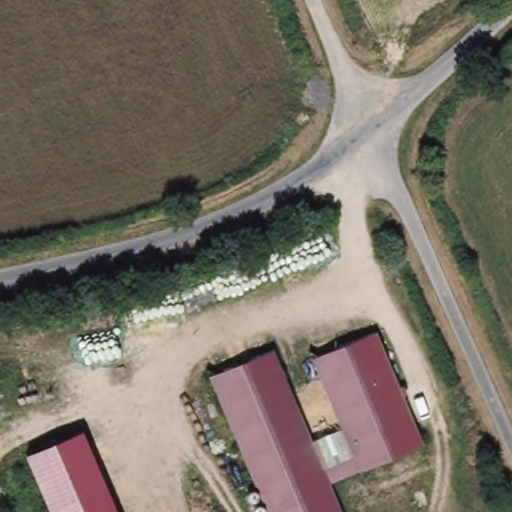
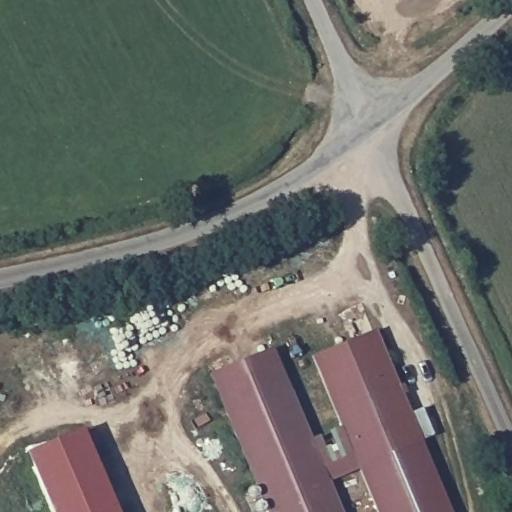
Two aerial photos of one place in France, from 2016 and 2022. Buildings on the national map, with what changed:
unchanged [(327,483),(338,512),(266,512),(210,376),(273,351),(320,467),(353,455),(314,358),(376,333),(421,446),(327,483)]
new [(353,455),(320,467),(309,441),(342,427),(353,455)]
unchanged [(120,512),(52,512),(27,453),(84,431),(120,512)]
new [(448,512),(376,512),(358,471),(421,446),(448,512)]

